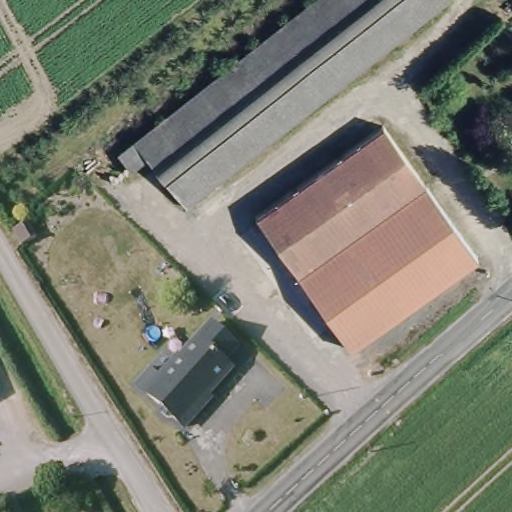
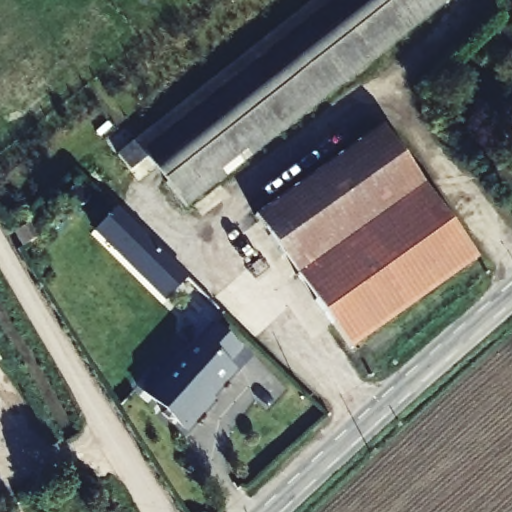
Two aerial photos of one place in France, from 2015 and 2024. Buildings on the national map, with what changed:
unchanged [(317,0),(443,0),(445,2),(310,106),(183,208),(144,161),(127,174),(114,158),(282,27),(317,0)]
unchanged [(479,262),(352,353),(258,220),(265,214),(259,206),(300,175),(307,184),(383,130),(479,262)]
new [(165,302),(94,233),(114,212),(186,281),(165,302)]
unchanged [(40,226),(48,240),(33,249),(25,235),(40,226)]
unchanged [(165,379),(162,376),(181,353),(185,356),(210,325),(219,326),(240,346),(227,361),(235,368),(200,406),(205,411),(189,428),(176,417),(170,419),(161,411),(160,402),(151,393),(165,379)]

